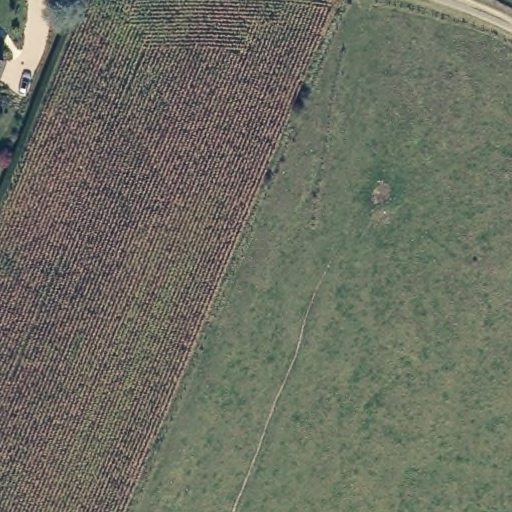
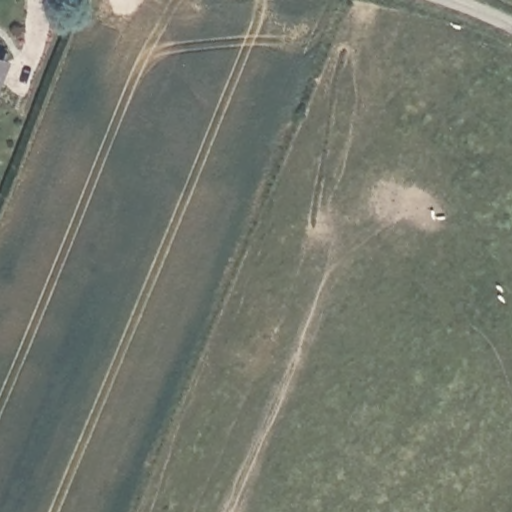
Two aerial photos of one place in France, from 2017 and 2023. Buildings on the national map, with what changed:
unchanged [(3,60),(0,68),(0,59),(3,60)]

